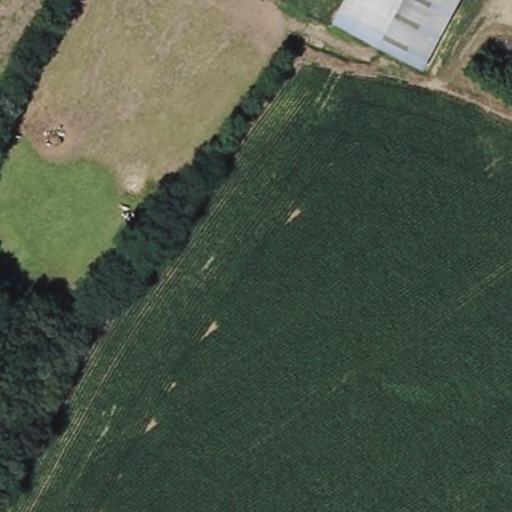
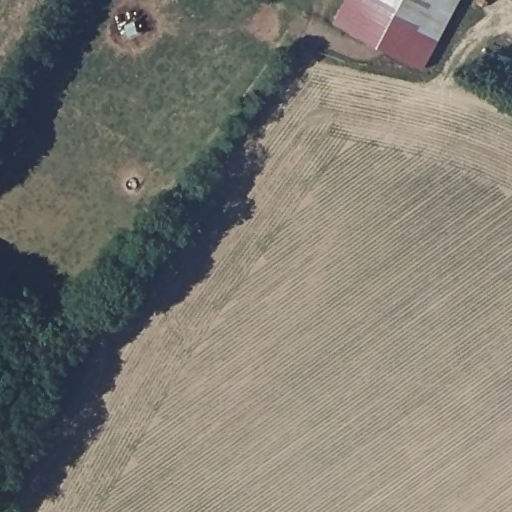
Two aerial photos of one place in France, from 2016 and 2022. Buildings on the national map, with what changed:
unchanged [(345,0),(459,0),(433,50),(432,53),(423,69),(334,22),(345,1),(345,0)]

